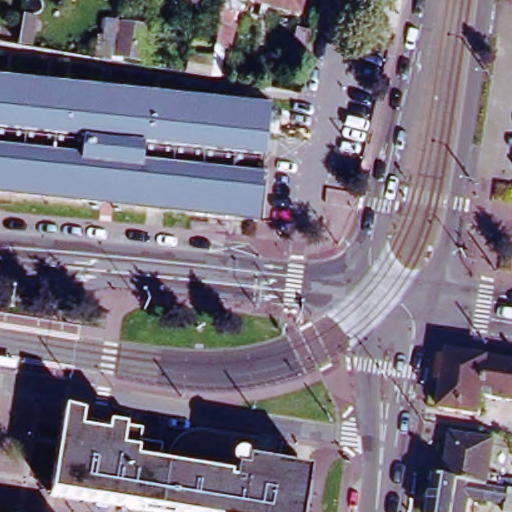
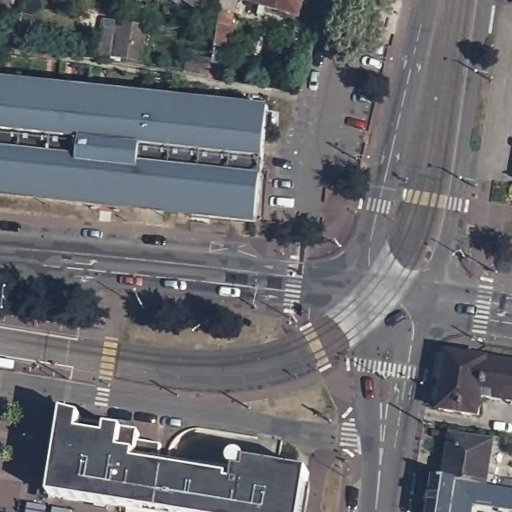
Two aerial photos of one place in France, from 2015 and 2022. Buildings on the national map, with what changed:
unchanged [(200,12),(190,5),(181,0),(208,0),(200,12)]
unchanged [(212,80),(216,50),(225,0),(304,0),(298,18),(237,0),(228,28),(232,28),(231,52),(230,52),(225,82),(212,80)]
unchanged [(34,18),(30,47),(18,45),(23,16),(34,18)]
unchanged [(102,35),(105,16),(117,19),(115,37),(102,35)]
unchanged [(122,20),(155,25),(154,35),(149,34),(145,59),(139,58),(116,54),(122,20)]
unchanged [(307,31),(302,58),(288,56),(292,29),(307,31)]
unchanged [(269,117),(259,225),(0,198),(0,87),(269,117)]
unchanged [(50,303),(70,306),(69,313),(49,310),(50,303)]
unchanged [(480,413),(439,406),(447,350),(460,352),(512,361),(512,399),(483,394),(480,413)]
unchanged [(80,420),(107,425),(107,427),(122,429),(122,433),(138,436),(138,440),(161,444),(160,452),(165,453),(164,458),(166,458),(245,471),(246,461),(307,471),(306,483),(308,484),(304,512),(149,512),(50,494),(63,411),(81,416),(80,420)]
unchanged [(451,431),(495,439),(487,483),(445,475),(451,431)]
unchanged [(468,496),(465,512),(429,512),(435,473),(445,475),(487,483),(508,487),(512,488),(512,512),(504,512),(505,503),(468,496)]

